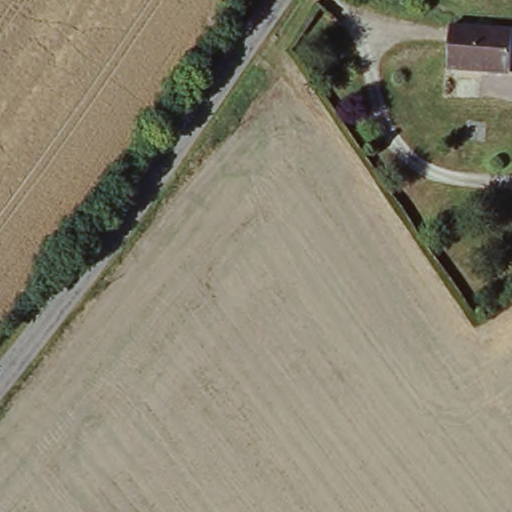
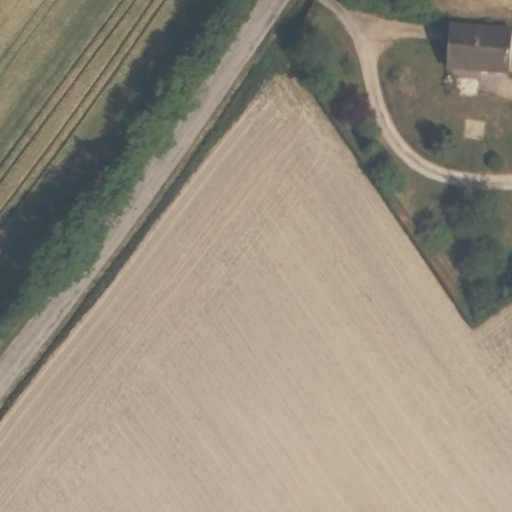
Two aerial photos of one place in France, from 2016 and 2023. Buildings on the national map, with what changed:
unchanged [(450,28),(512,27),(512,71),(452,74),(450,28)]

